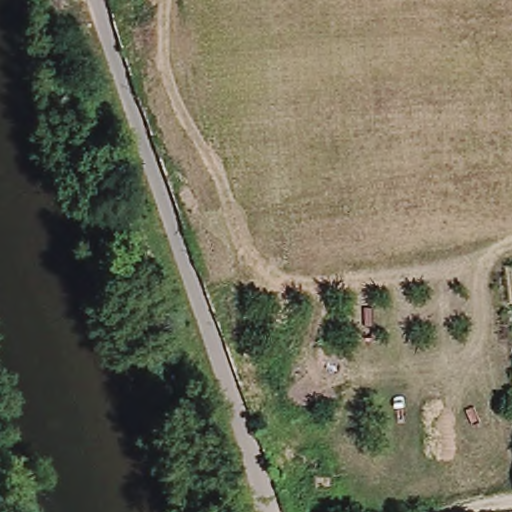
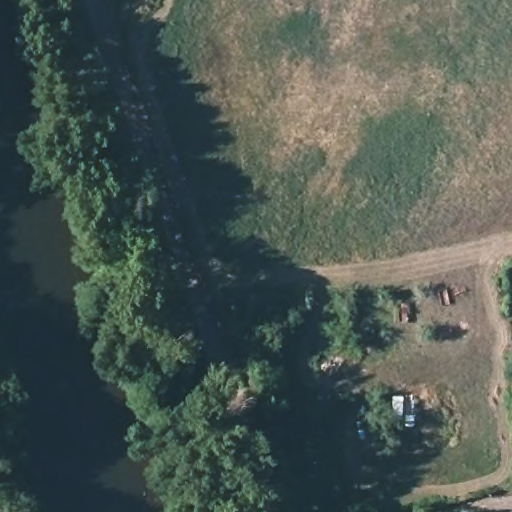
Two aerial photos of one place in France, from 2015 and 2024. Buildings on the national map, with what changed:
unchanged [(258,401),(251,384),(281,378),(289,391),(258,401)]

